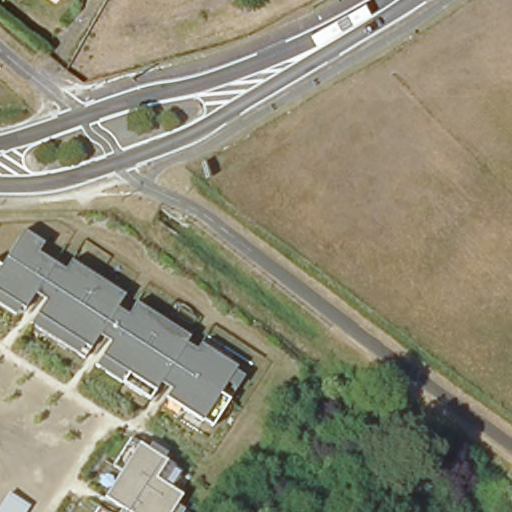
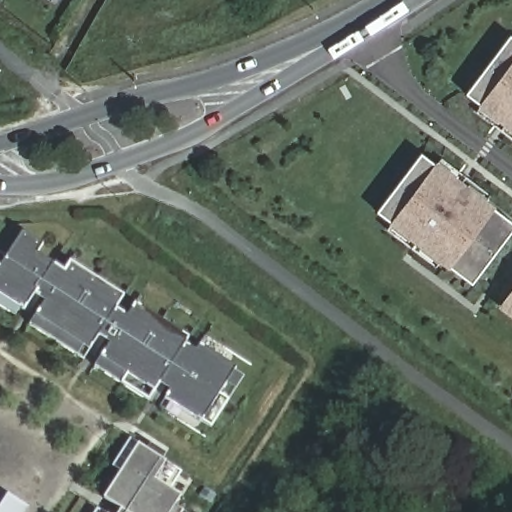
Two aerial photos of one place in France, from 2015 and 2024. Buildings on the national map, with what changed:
new [(500,118),(467,93),(511,35),(512,35),(512,113),(507,110),(500,118)]
new [(500,118),(495,125),(477,111),(482,104),(500,118)]
new [(512,129),(512,138),(508,135),(512,129)]
new [(437,163),(442,156),(461,171),(456,178),(451,184),(462,192),(467,186),(512,220),(512,231),(473,283),(441,259),(436,266),(417,251),(422,244),(377,210),(422,152),(437,163)]
new [(467,186),(472,179),(491,194),(486,200),(467,186)]
new [(406,243),(387,228),(392,222),(411,236),(406,243)]
unchanged [(43,242),(37,253),(66,271),(71,260),(125,294),(117,308),(130,317),(136,304),(189,337),(186,342),(200,350),(203,344),(246,374),(213,426),(156,389),(149,400),(96,366),(112,342),(100,334),(85,357),(31,324),(46,301),(35,294),(20,316),(0,303),(0,264),(2,266),(23,231),(43,242)]
new [(512,290),(512,312),(501,304),(512,290)]
unchanged [(106,497),(121,473),(112,467),(131,439),(141,444),(167,462),(181,472),(170,487),(181,494),(170,512),(121,512),(122,509),(106,497)]
unchanged [(0,512),(0,506),(9,491),(31,505),(27,512),(0,512)]
unchanged [(101,512),(97,512),(97,511),(101,512)]

